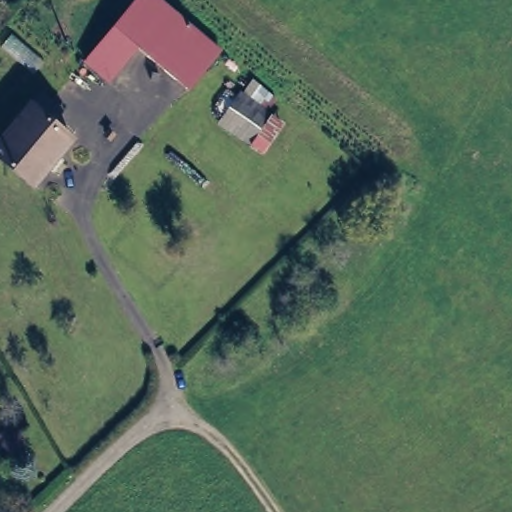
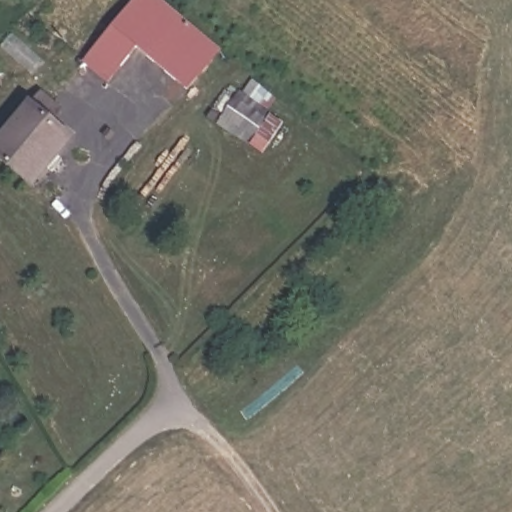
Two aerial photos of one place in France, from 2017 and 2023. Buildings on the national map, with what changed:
unchanged [(89,65),(97,55),(87,45),(107,24),(117,32),(143,0),(165,0),(183,16),(180,22),(155,55),(144,45),(138,50),(112,84),(89,65)]
unchanged [(177,105),(162,93),(177,74),(155,55),(180,22),(217,53),(177,105)]
unchanged [(273,113),(250,148),(215,125),(240,91),(273,113)]
unchanged [(40,94),(49,101),(60,109),(50,124),(65,138),(30,185),(0,161),(0,142),(40,94)]

